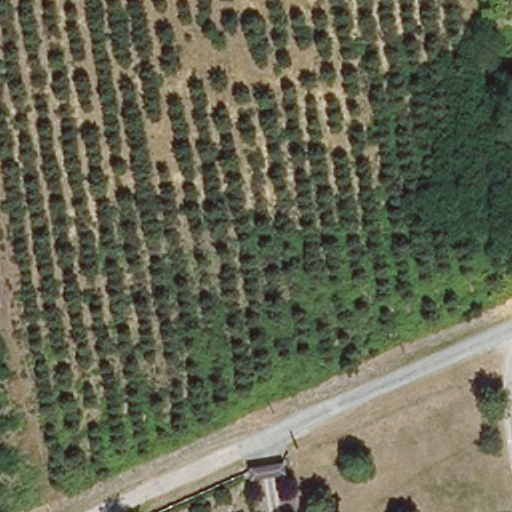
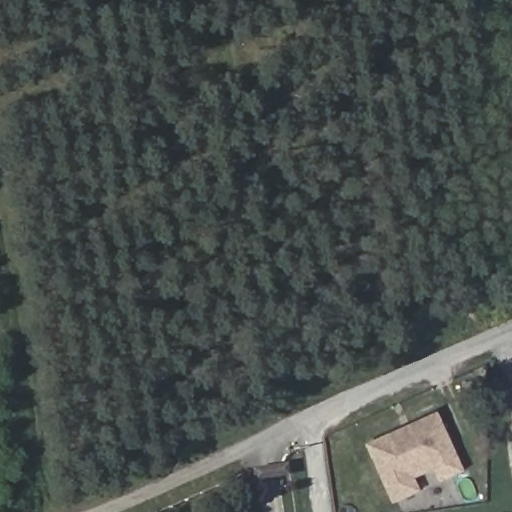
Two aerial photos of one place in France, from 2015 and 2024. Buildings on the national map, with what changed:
unchanged [(502,0),(512,0),(512,4),(503,5),(502,0)]
new [(442,411),(469,471),(445,482),(439,469),(419,477),(426,492),(397,505),(370,443),(442,411)]

